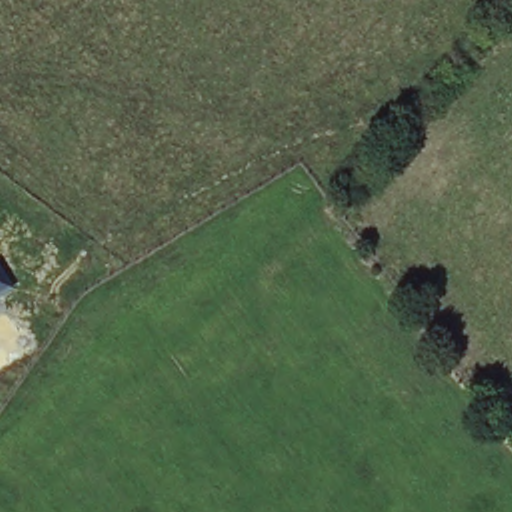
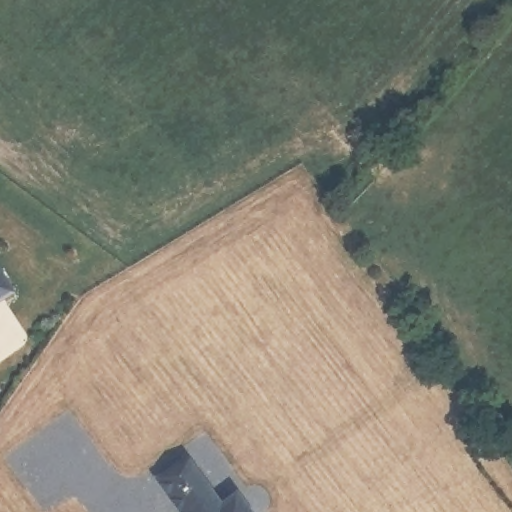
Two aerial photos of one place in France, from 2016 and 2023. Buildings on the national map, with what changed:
unchanged [(15,288),(0,297),(0,260),(15,288)]
new [(191,445),(226,493),(241,481),(261,508),(256,512),(187,512),(157,470),(191,445)]

